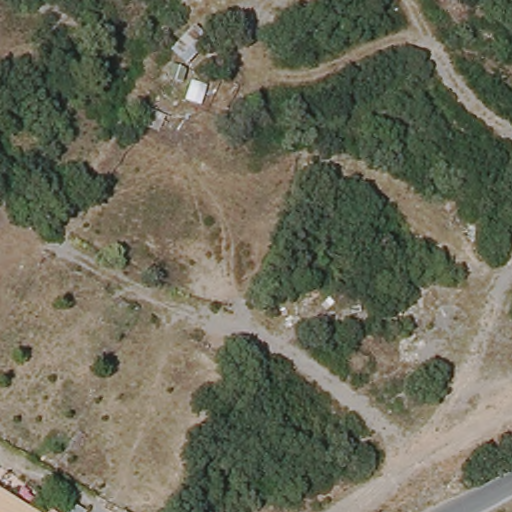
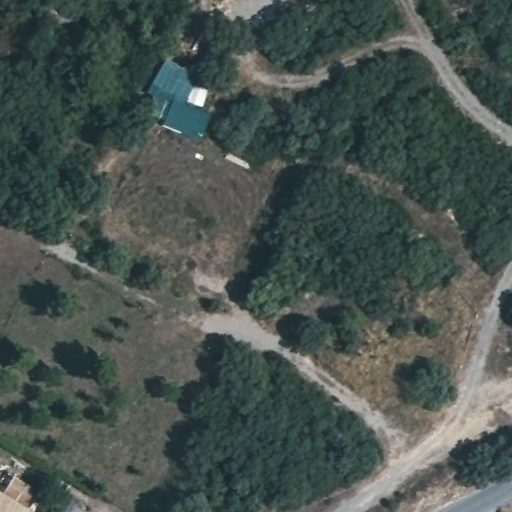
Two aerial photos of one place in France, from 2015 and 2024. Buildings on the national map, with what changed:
new [(199,137),(162,125),(165,118),(139,109),(166,58),(198,74),(183,103),(208,114),(199,137)]
unchanged [(0,499),(21,512),(0,512),(0,499)]

